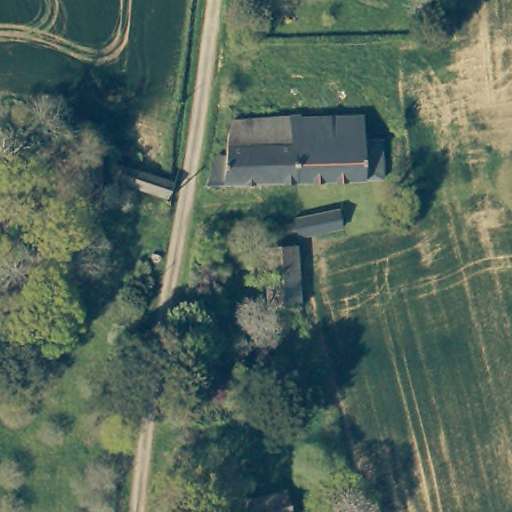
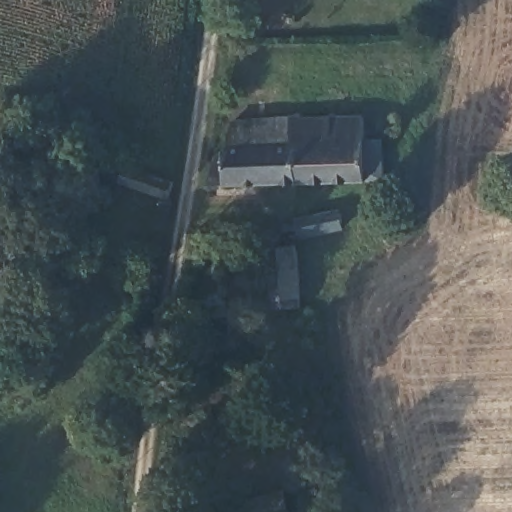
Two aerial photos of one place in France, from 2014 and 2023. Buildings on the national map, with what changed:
unchanged [(284,119),(318,119),(351,118),(351,143),(368,143),(370,182),(319,183),(285,183),(284,119)]
unchanged [(197,184),(200,163),(207,158),(216,158),(216,138),(221,120),(284,119),(285,183),(197,184)]
unchanged [(381,139),(369,139),(369,122),(381,122),(381,139)]
unchanged [(112,165),(108,219),(84,219),(87,164),(112,165)]
unchanged [(177,209),(129,192),(132,184),(120,179),(124,164),(153,174),(150,182),(183,194),(177,209)]
unchanged [(281,224),(295,222),(294,219),(339,210),(342,229),(297,237),(282,239),(281,224)]
unchanged [(299,305),(268,309),(264,251),(295,248),(299,305)]
unchanged [(141,274),(140,269),(141,264),(145,261),(150,260),(155,263),(157,267),(158,273),(155,277),(150,279),(145,278),(141,274)]
unchanged [(240,502),(285,487),(291,512),(243,512),(240,502)]

